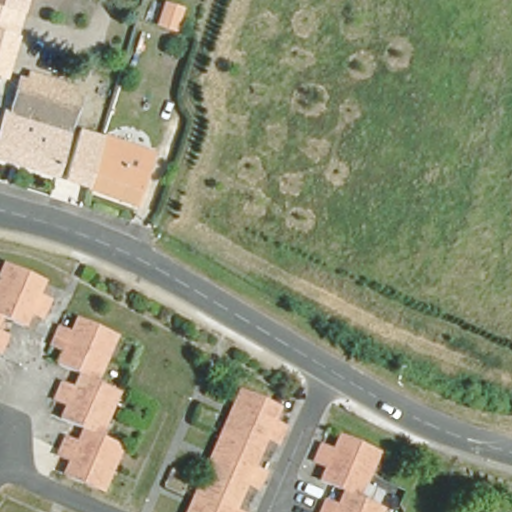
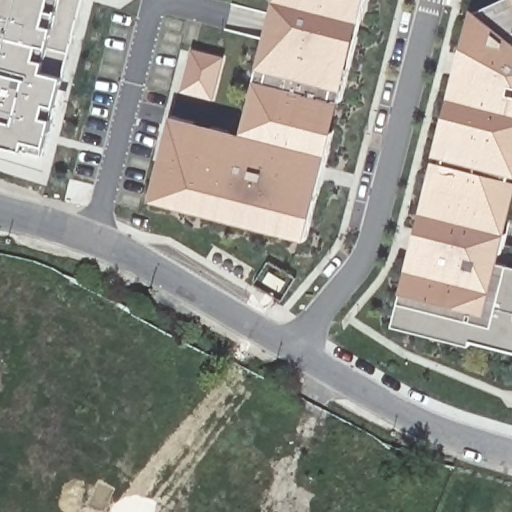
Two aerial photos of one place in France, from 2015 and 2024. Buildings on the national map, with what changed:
demolished [(25,10),(0,2),(0,0),(27,0),(25,10)]
new [(44,151),(0,141),(0,0),(78,0),(44,151)]
new [(306,245),(146,199),(168,114),(240,132),(277,0),(371,0),(306,245)]
new [(477,10),(499,0),(512,0),(512,212),(506,234),(499,262),(512,266),(512,353),(471,342),(470,347),(391,327),(400,292),(402,292),(407,270),(417,232),(422,212),(435,161),(436,155),(447,115),(451,97),(465,46),(475,7),(477,10)]
demolished [(5,76),(0,75),(0,2),(25,10),(17,38),(5,76)]
new [(230,57),(220,99),(187,92),(197,49),(230,57)]
demolished [(0,162),(0,133),(5,118),(12,120),(24,83),(29,84),(32,73),(77,87),(74,99),(81,101),(57,180),(0,162)]
demolished [(87,191),(65,184),(81,135),(101,141),(87,191)]
demolished [(153,157),(138,207),(86,192),(87,191),(101,141),(153,157)]
demolished [(0,316),(0,265),(22,274),(38,281),(31,296),(43,301),(36,317),(25,312),(19,325),(0,316)]
demolished [(100,436),(119,444),(101,487),(60,471),(65,460),(52,455),(58,442),(70,446),(77,427),(58,420),(62,407),(62,406),(51,401),(56,388),(68,393),(75,375),(56,368),(61,355),(50,350),(57,334),(69,339),(75,323),(116,340),(97,384),(117,392),(100,436)]
demolished [(2,336),(0,340),(0,335),(2,336)]
demolished [(250,485),(240,480),(227,508),(236,512),(176,512),(220,417),(222,413),(226,403),(234,386),(275,405),(266,425),(276,429),(275,430),(270,443),(260,439),(246,466),(257,471),(250,485)]
demolished [(363,512),(300,512),(305,502),(305,501),(317,506),(323,491),(310,485),(318,465),(308,461),(307,460),(313,446),(325,451),(333,432),(357,443),(374,450),(350,504),(364,510),(363,512)]

